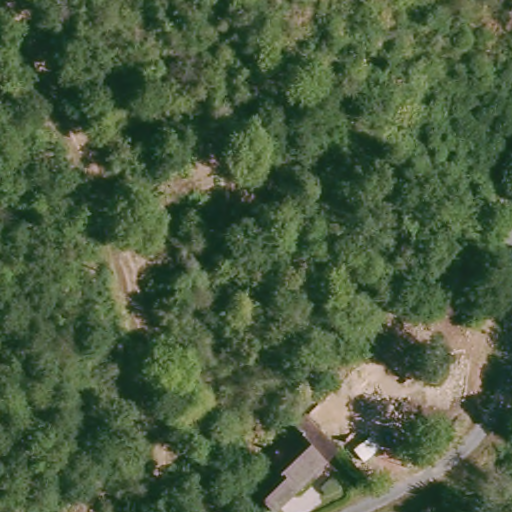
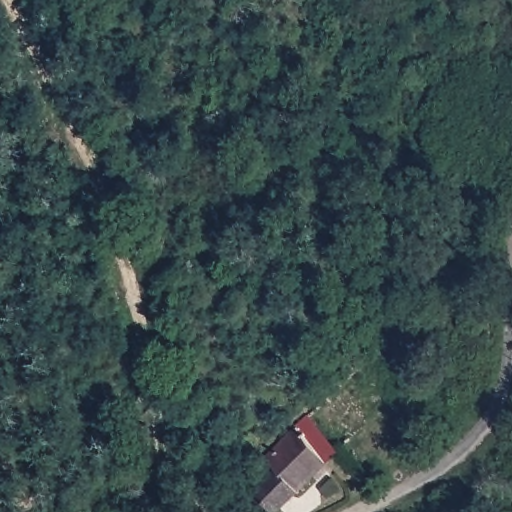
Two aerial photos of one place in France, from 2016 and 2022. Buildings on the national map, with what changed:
unchanged [(280,512),(278,512),(274,508),(269,512),(260,512),(247,498),(277,468),(269,457),(299,429),(331,463),(280,512)]

